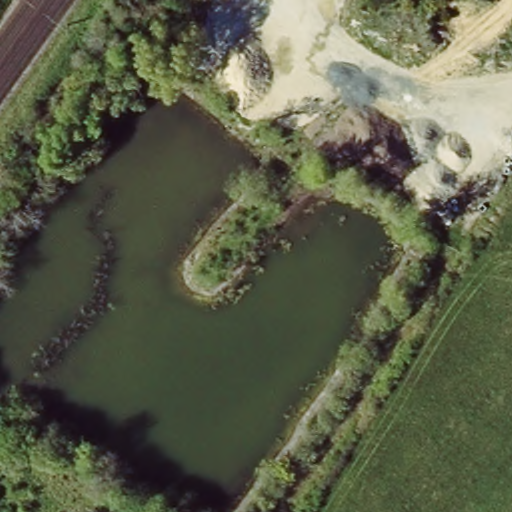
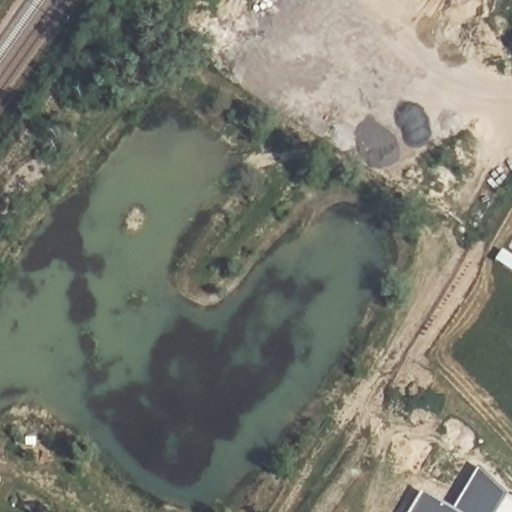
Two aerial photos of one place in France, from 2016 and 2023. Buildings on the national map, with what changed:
new [(425,493),(451,510),(478,467),(507,495),(497,512),(413,512),(425,493)]

